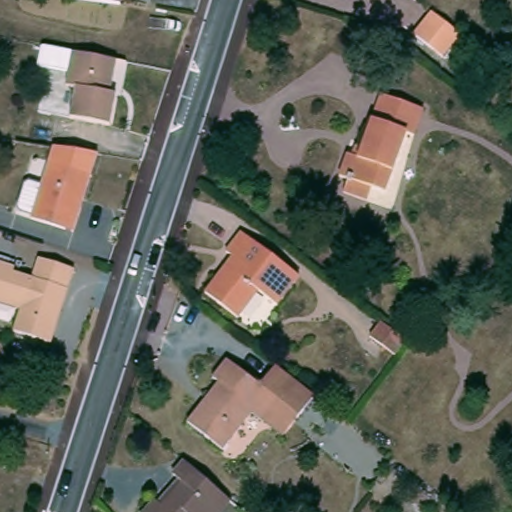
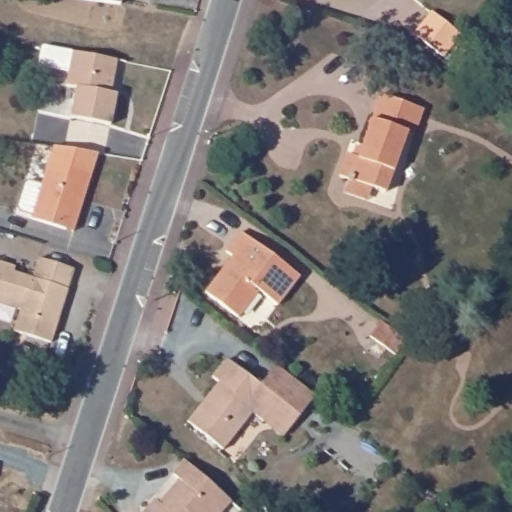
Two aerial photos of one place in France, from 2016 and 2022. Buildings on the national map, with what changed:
unchanged [(124,5),(67,0),(125,0),(124,5)]
unchanged [(462,51),(444,72),(415,50),(433,28),(462,51)]
unchanged [(108,96),(116,98),(108,126),(69,117),(74,91),(67,89),(75,54),(116,62),(108,96)]
unchanged [(345,195),(351,181),(341,177),(349,154),(357,156),(370,120),(376,122),(386,93),(431,110),(421,134),(415,133),(390,197),(377,192),(371,206),(345,195)]
unchanged [(70,230),(30,217),(47,163),(87,175),(70,230)]
unchanged [(238,259),(233,253),(245,237),(301,280),(278,308),(258,292),(236,319),(206,295),(238,259)]
unchanged [(15,273),(33,279),(40,258),(75,269),(51,340),(16,330),(23,308),(0,301),(0,264),(16,268),(15,273)]
unchanged [(375,333),(386,318),(411,337),(399,352),(375,333)]
unchanged [(263,419),(253,412),(223,449),(189,422),(219,385),(212,377),(225,361),(259,387),(274,368),(316,399),(299,420),(285,437),(263,419)]
unchanged [(178,479),(190,467),(233,509),(231,512),(182,512),(173,503),(187,488),(178,479)]
unchanged [(182,512),(164,512),(173,503),(182,512)]
unchanged [(162,512),(149,512),(154,507),(162,512)]

